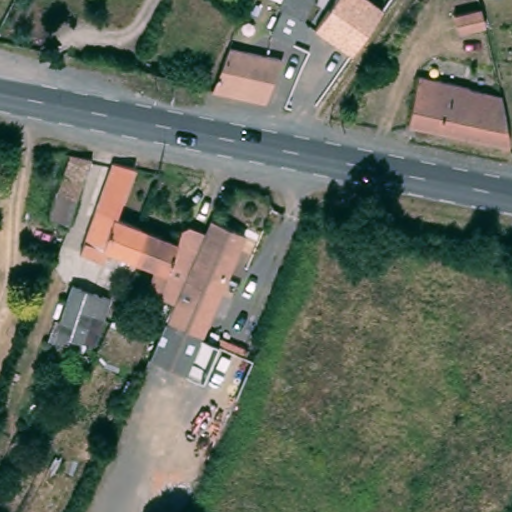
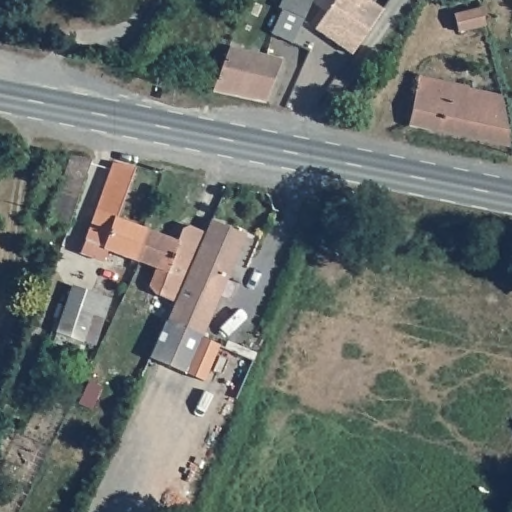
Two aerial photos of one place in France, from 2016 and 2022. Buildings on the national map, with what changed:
unchanged [(300,15),(289,43),(269,35),(278,14),(283,17),(285,12),(279,10),(283,0),(308,0),(300,15)]
unchanged [(335,0),(370,0),(383,9),(352,55),(314,30),(335,0)]
unchanged [(488,14),(492,32),(464,37),(461,20),(488,14)]
unchanged [(205,92),(229,44),(282,59),(263,104),(205,92)]
unchanged [(503,148),(406,128),(423,78),(474,89),(474,95),(506,102),(499,125),(510,127),(503,148)]
unchanged [(68,226),(44,216),(70,152),(95,158),(68,226)]
unchanged [(129,239),(136,242),(128,259),(78,244),(109,162),(131,167),(111,219),(135,226),(129,239)]
unchanged [(135,306),(144,289),(137,282),(144,265),(128,259),(136,242),(129,239),(135,226),(171,237),(175,229),(181,226),(197,231),(163,298),(154,315),(135,306)]
unchanged [(169,322),(216,231),(246,242),(199,337),(169,322)]
unchanged [(58,334),(54,332),(71,291),(95,299),(79,340),(59,335),(58,334)]
unchanged [(180,376),(149,361),(169,322),(199,337),(180,376)]

